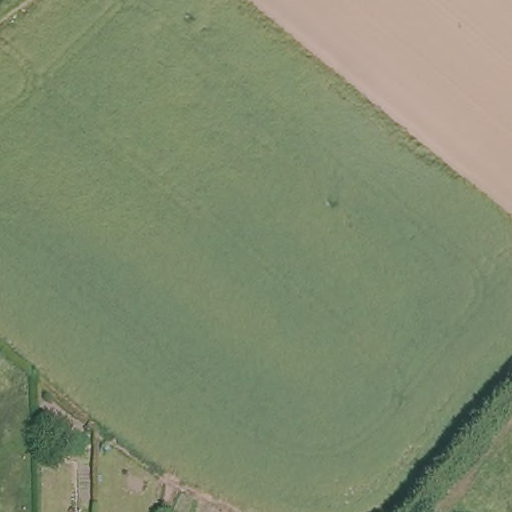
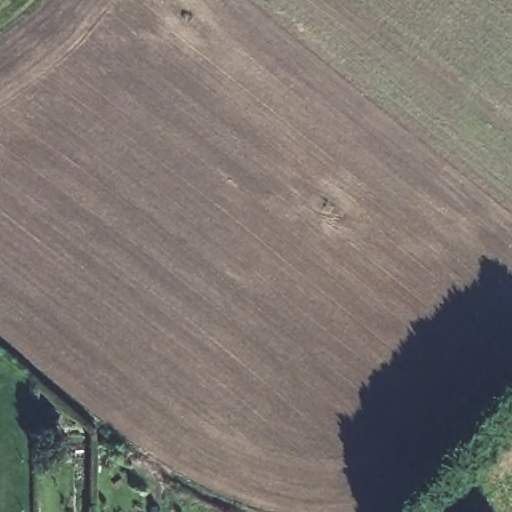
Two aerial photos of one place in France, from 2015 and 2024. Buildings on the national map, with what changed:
[]

